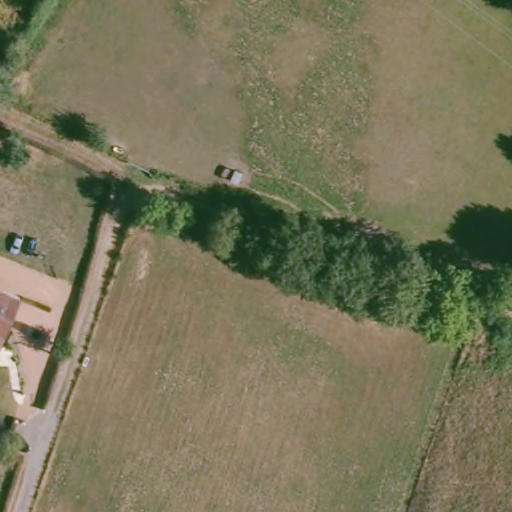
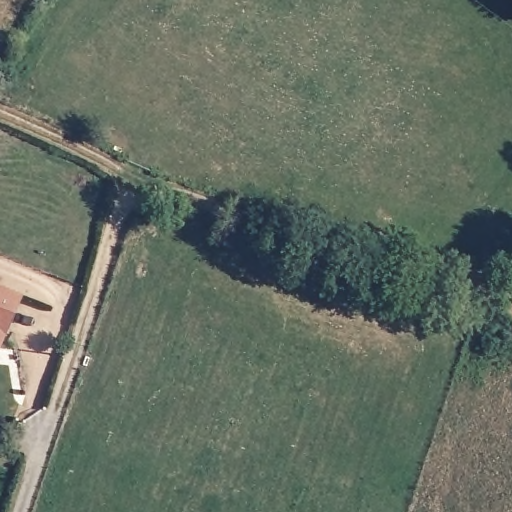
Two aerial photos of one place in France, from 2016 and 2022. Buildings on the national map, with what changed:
unchanged [(20,298),(5,333),(0,331),(0,290),(20,298)]

